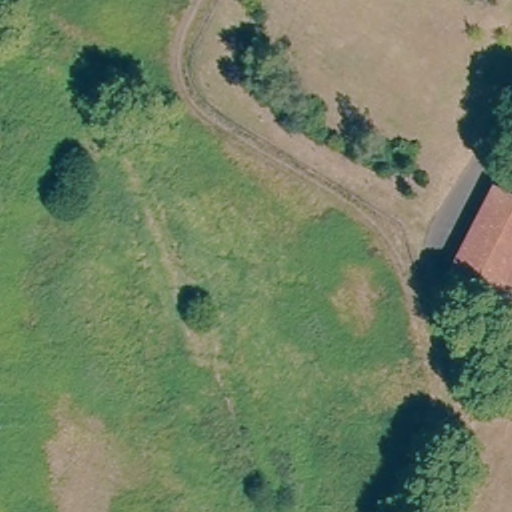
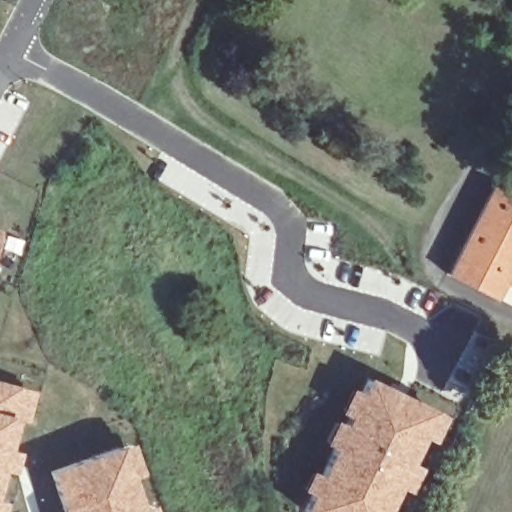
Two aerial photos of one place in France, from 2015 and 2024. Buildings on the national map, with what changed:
unchanged [(512,194),(512,287),(500,281),(492,296),(449,273),(495,185),(512,194)]
new [(480,343),(475,341),(469,351),(466,348),(475,331),(498,343),(463,401),(455,396),(480,343)]
new [(317,471),(328,447),(321,443),(350,385),(358,388),(365,375),(447,416),(434,442),(425,437),(412,461),(422,466),(408,492),(402,489),(390,512),(299,512),(308,494),(298,488),(309,467),(317,471)]
new [(24,419),(15,417),(0,473),(0,381),(32,391),(24,419)]
new [(64,512),(49,472),(120,448),(142,512),(64,512)]

